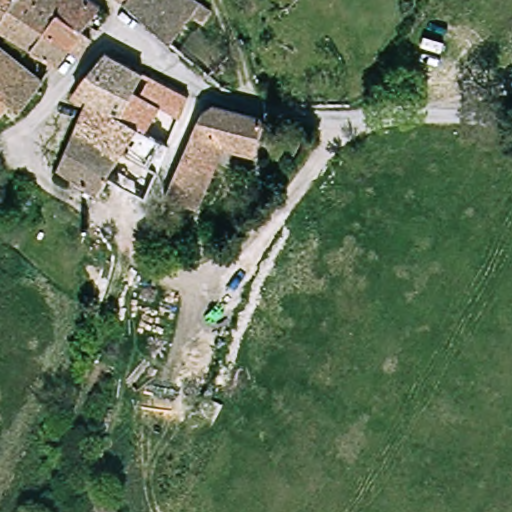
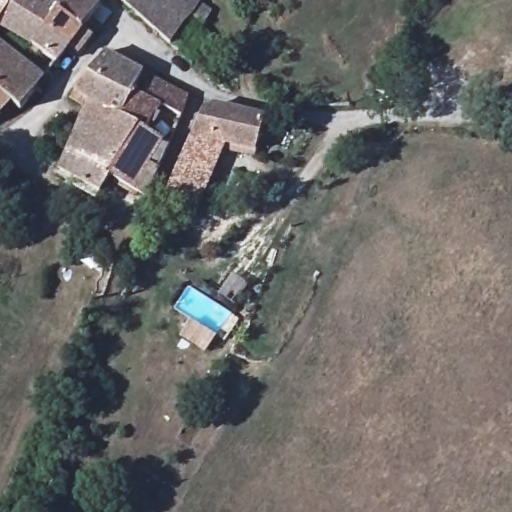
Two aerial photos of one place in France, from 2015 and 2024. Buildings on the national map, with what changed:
unchanged [(0,7),(0,0),(16,0),(8,11),(0,7)]
unchanged [(86,38),(76,51),(78,53),(74,58),(63,50),(8,11),(16,0),(57,0),(50,11),(86,38)]
unchanged [(85,26),(91,32),(86,38),(50,11),(57,0),(84,0),(97,9),(85,26)]
unchanged [(115,0),(130,0),(123,7),(115,0)]
unchanged [(185,33),(170,48),(123,7),(130,0),(194,0),(246,39),(235,51),(202,28),(194,29),(185,33)]
unchanged [(51,66),(0,32),(0,7),(8,11),(63,50),(51,66)]
unchanged [(17,111),(4,106),(0,109),(0,51),(39,81),(17,111)]
unchanged [(106,55),(141,75),(120,120),(75,93),(106,55)]
unchanged [(148,79),(150,76),(189,98),(146,201),(109,179),(100,197),(76,182),(73,187),(53,177),(55,172),(58,174),(86,112),(69,100),(75,93),(120,120),(141,75),(148,79)]
unchanged [(229,145),(203,210),(189,204),(174,198),(170,196),(206,118),(209,113),(214,111),(220,110),(270,122),(263,143),(260,154),(229,145)]

